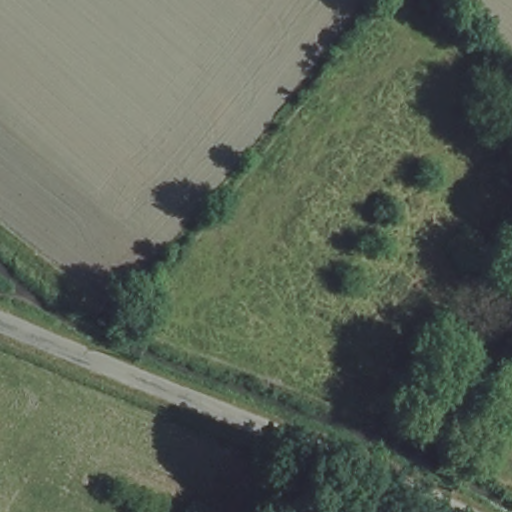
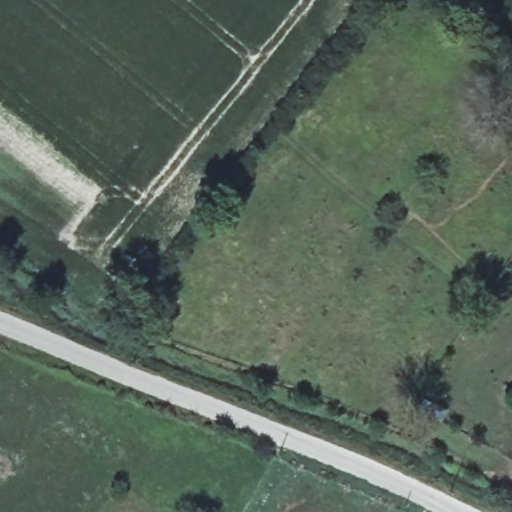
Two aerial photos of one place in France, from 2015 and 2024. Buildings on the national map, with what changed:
[]

